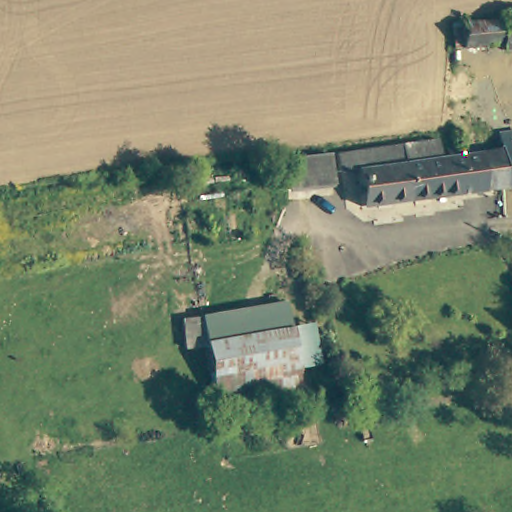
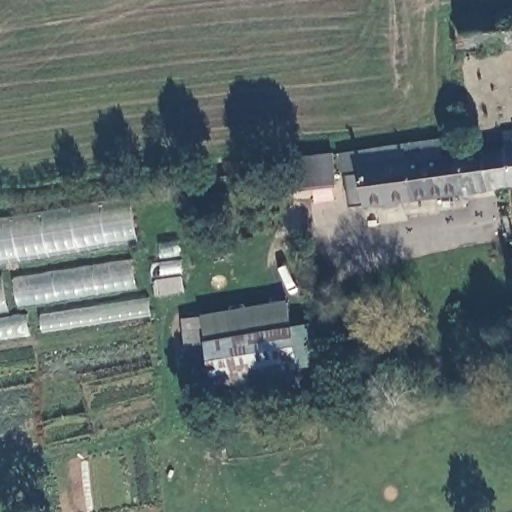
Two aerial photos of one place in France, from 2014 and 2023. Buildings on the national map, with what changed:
unchanged [(465,26),(512,18),(512,45),(470,54),(465,26)]
unchanged [(512,128),(512,157),(510,145),(508,129),(512,128)]
unchanged [(512,188),(371,213),(361,175),(346,179),(342,163),(444,143),(449,161),(470,154),(510,145),(512,157),(512,188)]
unchanged [(323,165),(335,164),(340,194),(326,195),(295,201),(290,171),(323,165)]
new [(140,244),(0,266),(0,219),(130,198),(140,244)]
new [(135,288),(18,304),(15,279),(131,260),(135,288)]
unchanged [(202,309),(288,293),(292,318),(206,335),(202,309)]
new [(150,298),(154,316),(42,333),(40,316),(150,298)]
unchanged [(292,318),(293,319),(298,319),(313,316),(320,352),(320,356),(299,359),(300,362),(213,378),(206,335),(292,318)]
unchanged [(216,398),(213,378),(300,362),(302,379),(216,398)]

